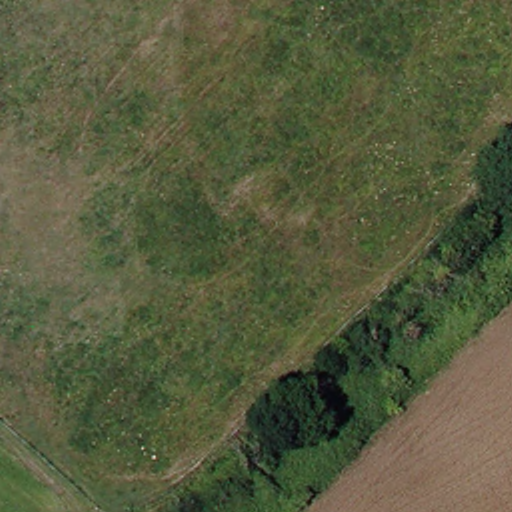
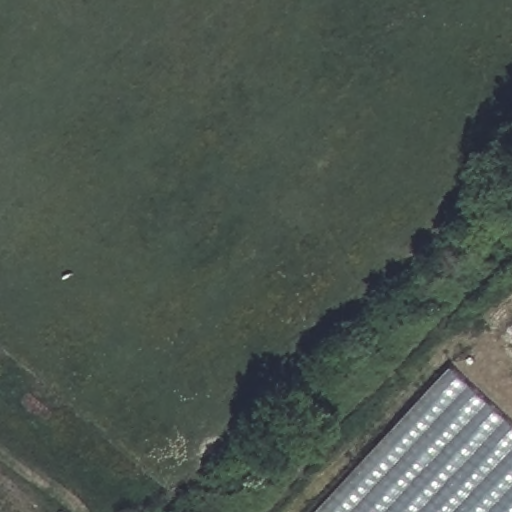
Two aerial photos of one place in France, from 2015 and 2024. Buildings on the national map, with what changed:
new [(512,422),(512,512),(317,512),(453,367),(512,422)]

